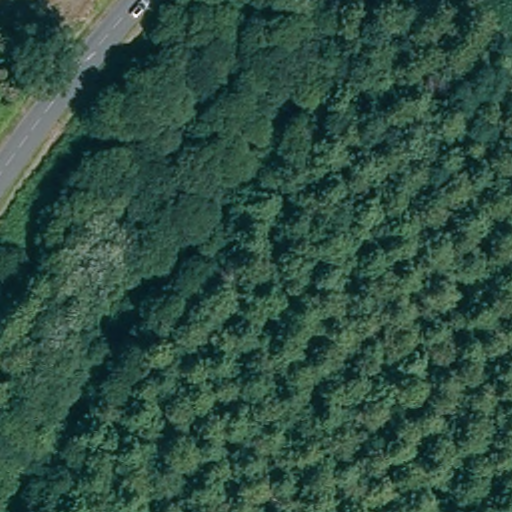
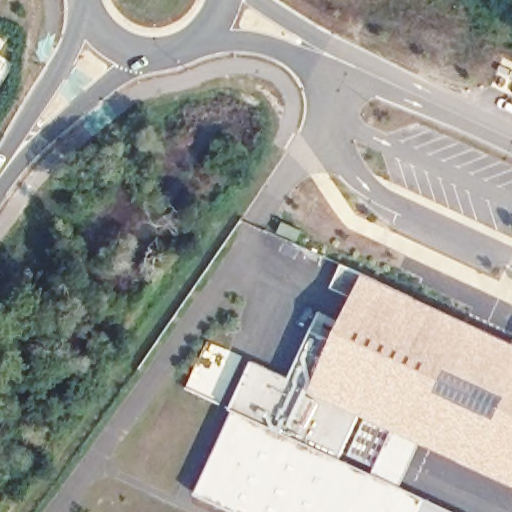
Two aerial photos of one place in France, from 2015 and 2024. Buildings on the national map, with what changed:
new [(284,221),(302,230),(297,241),(279,232),(284,221)]
new [(402,487),(430,500),(425,512),(233,512),(196,495),(236,409),(232,408),(254,361),(288,379),(321,311),(346,317),(356,295),(334,287),(342,265),(367,275),(512,342),(512,486),(422,445),(402,487)]
new [(456,512),(425,512),(430,500),(456,512)]

